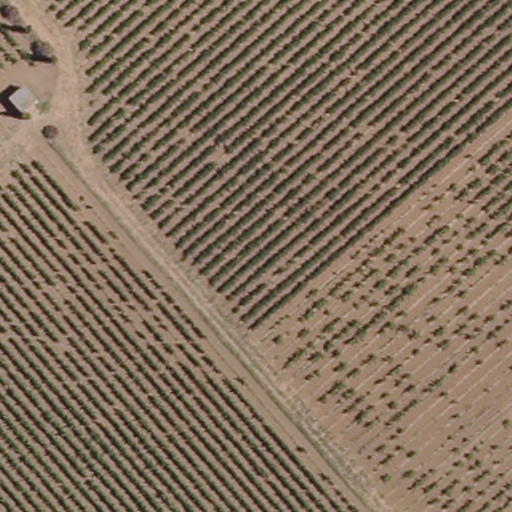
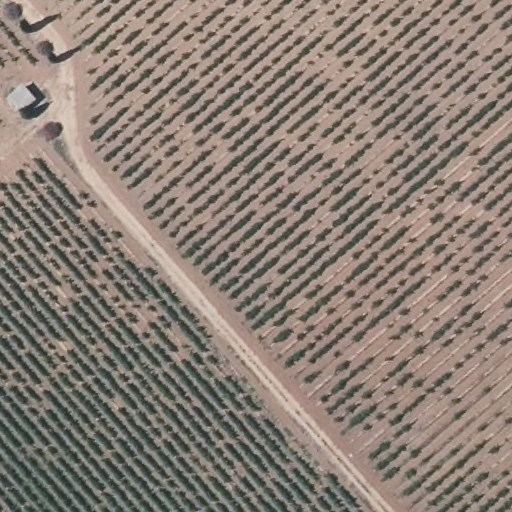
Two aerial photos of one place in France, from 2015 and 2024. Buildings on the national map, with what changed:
unchanged [(39,99),(26,109),(15,94),(27,85),(39,99)]

